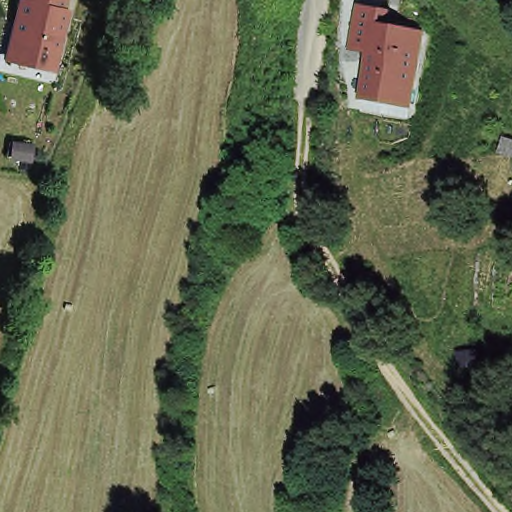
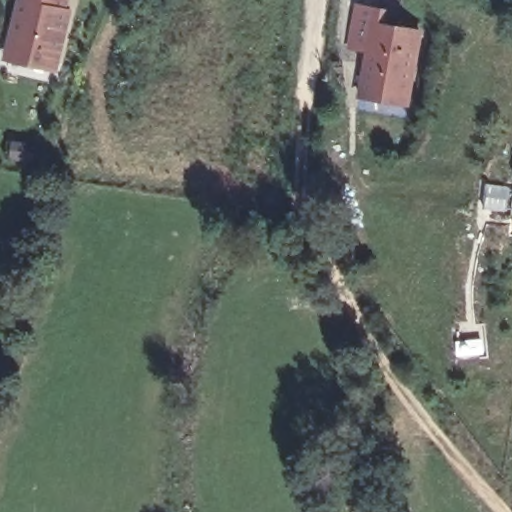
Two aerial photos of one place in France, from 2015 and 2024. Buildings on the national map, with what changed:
unchanged [(14,0),(68,0),(56,69),(2,64),(14,0)]
unchanged [(357,98),(364,54),(346,49),(355,4),(392,11),(389,26),(419,31),(406,107),(357,98)]

